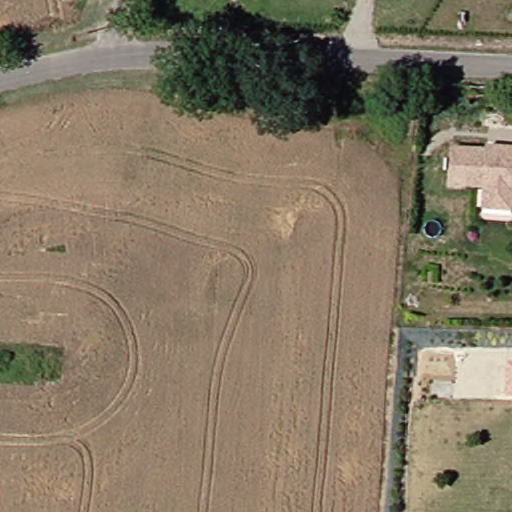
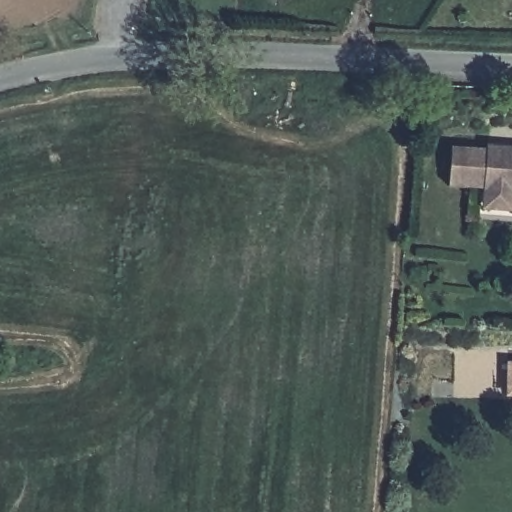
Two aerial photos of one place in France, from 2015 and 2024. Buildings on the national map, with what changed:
unchanged [(484,190),(485,185),(450,184),(453,146),(487,147),(488,152),(502,152),(502,145),(512,146),(512,207),(485,207),(484,190)]
unchanged [(509,364),(512,365),(512,397),(509,396),(509,364)]

